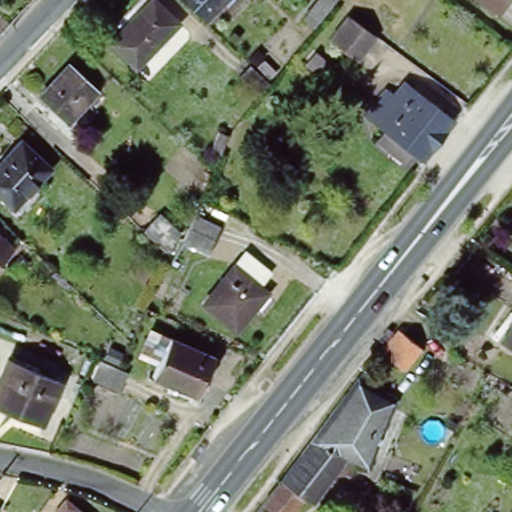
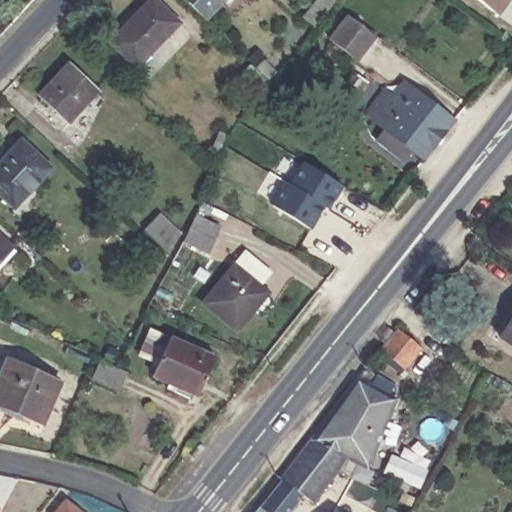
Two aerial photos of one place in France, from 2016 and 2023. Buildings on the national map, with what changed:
unchanged [(147,0),(174,25),(132,69),(104,41),(145,0),(147,0)]
unchanged [(178,0),(229,0),(205,25),(178,0)]
unchanged [(324,0),(333,7),(317,29),(305,20),(321,0),(324,0)]
unchanged [(478,0),(509,0),(498,15),(478,0)]
unchanged [(341,28),(370,52),(348,79),(318,55),(341,28)]
unchanged [(70,65),(98,91),(67,124),(40,98),(70,65)]
unchanged [(273,85),(264,96),(242,76),(252,65),(273,85)]
unchanged [(386,91),(395,99),(400,92),(410,100),(415,95),(455,125),(424,164),(365,117),(386,91)]
unchanged [(15,210),(0,196),(0,163),(4,159),(20,141),(51,170),(15,210)]
new [(304,162),(342,185),(328,209),(324,206),(305,195),(305,194),(290,185),(304,162)]
new [(286,182),(290,185),(305,194),(305,195),(324,206),(311,229),(272,205),(286,182)]
unchanged [(157,217),(178,237),(163,254),(142,232),(157,217)]
unchanged [(191,225),(195,217),(220,229),(215,237),(207,255),(183,242),(191,225)]
unchanged [(0,262),(0,237),(12,249),(0,262)]
unchanged [(240,255),(264,274),(254,286),(262,294),(231,331),(198,305),(240,255)]
unchanged [(512,327),(512,350),(502,343),(512,327)]
unchanged [(392,335),(418,355),(400,376),(375,356),(392,335)]
unchanged [(170,339),(215,359),(199,396),(155,376),(170,339)]
unchanged [(92,379),(100,360),(117,367),(127,372),(119,391),(92,379)]
unchanged [(62,384),(43,425),(0,406),(0,379),(8,361),(62,384)]
unchanged [(333,472),(310,505),(298,497),(288,512),(250,512),(277,477),(314,429),(335,401),(355,376),(362,368),(371,375),(364,384),(390,396),(362,465),(350,460),(342,478),(333,472)]
unchanged [(54,511),(65,498),(83,512),(55,512),(54,511)]
new [(337,512),(334,512),(335,511),(337,512)]

